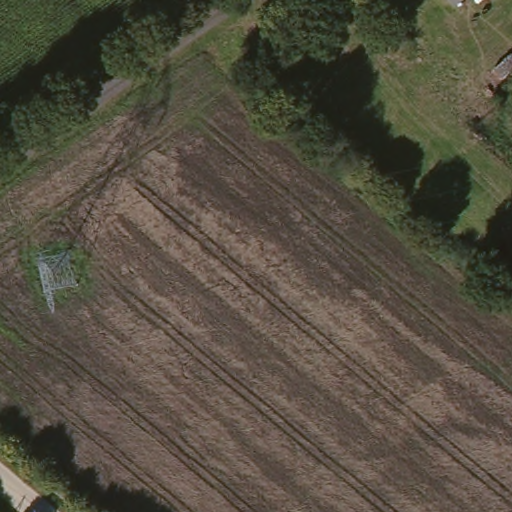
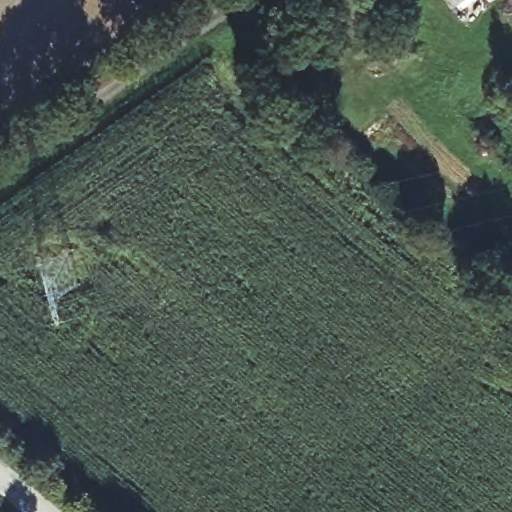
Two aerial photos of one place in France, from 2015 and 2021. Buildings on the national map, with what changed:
unchanged [(455,0),(467,0),(460,6),(455,0)]

